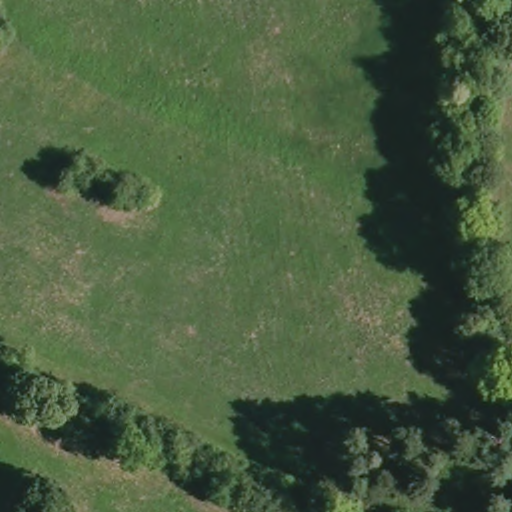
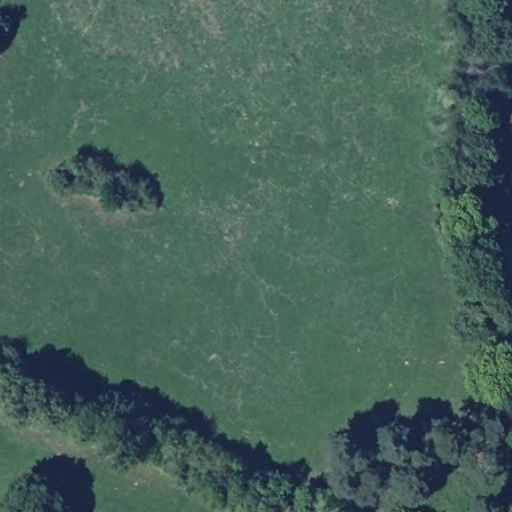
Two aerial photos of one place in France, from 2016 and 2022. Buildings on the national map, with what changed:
[]

